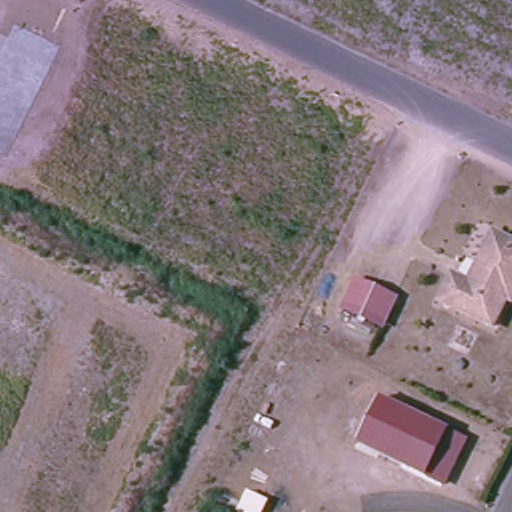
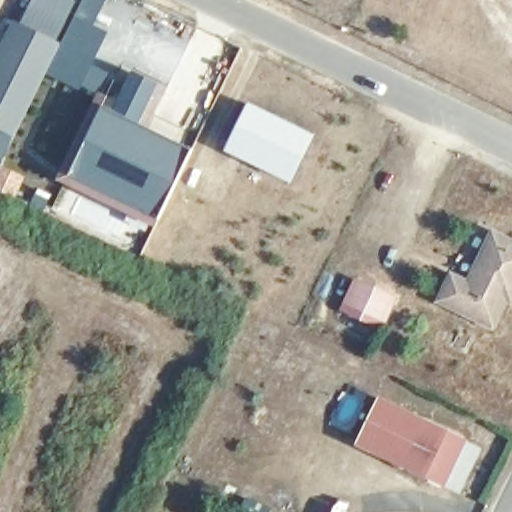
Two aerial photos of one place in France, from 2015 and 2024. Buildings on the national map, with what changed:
unchanged [(15,20),(23,23),(33,0),(67,0),(77,4),(59,43),(15,135),(5,156),(0,154),(0,51),(15,20)]
new [(61,44),(83,0),(107,0),(94,26),(108,33),(92,65),(126,84),(114,111),(103,106),(108,97),(98,92),(95,99),(44,74),(59,43),(61,44)]
new [(158,83),(139,126),(193,151),(156,229),(55,180),(98,92),(108,97),(103,106),(114,111),(132,71),(158,83)]
new [(315,135),(292,185),(224,151),(249,102),(315,135)]
unchanged [(446,277),(468,287),(489,232),(512,245),(512,294),(495,324),(432,300),(446,277)]
unchanged [(390,299),(380,331),(344,311),(358,284),(390,299)]
unchanged [(469,438),(446,487),(427,479),(357,444),(379,397),(449,428),(469,438)]

